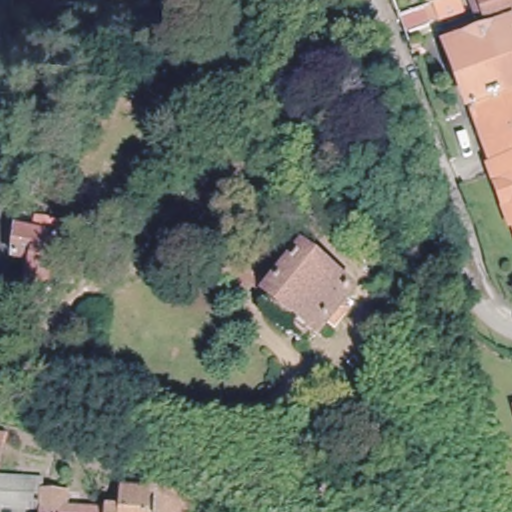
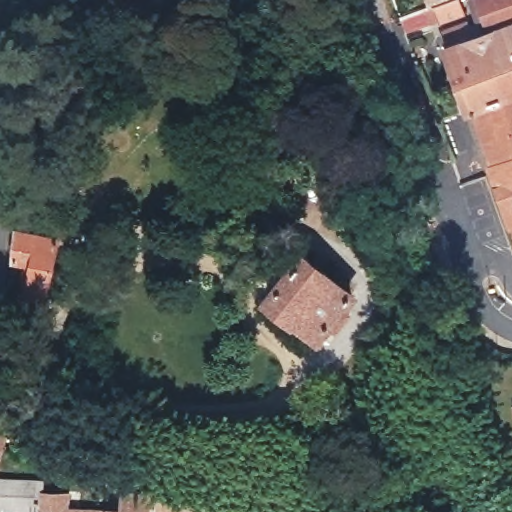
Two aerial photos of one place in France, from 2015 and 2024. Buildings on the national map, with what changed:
unchanged [(468,0),(458,3),(465,20),(443,27),(442,26),(432,29),(427,15),(435,12),(430,0),(468,0)]
unchanged [(475,115),(466,91),(462,92),(448,56),(453,54),(447,37),(468,30),(474,46),(492,40),(488,28),(481,31),(469,0),(512,0),(512,101),(475,115)]
unchanged [(492,174),(496,172),(475,115),(512,101),(512,229),(492,174)]
unchanged [(35,245),(37,230),(60,235),(57,249),(58,250),(46,307),(26,303),(32,272),(14,268),(16,241),(35,245)]
unchanged [(351,293),(341,307),(348,313),(336,328),(328,322),(319,335),(312,328),(306,336),(296,327),(301,321),(293,315),(292,317),(270,298),(303,256),(351,293)]
unchanged [(153,494),(146,493),(145,512),(40,512),(41,511),(0,510),(0,480),(42,482),(41,493),(67,495),(66,509),(121,511),(122,492),(126,492),(127,475),(197,498),(190,512),(152,512),(153,494)]
unchanged [(218,511),(217,512),(195,512),(200,502),(218,511)]

